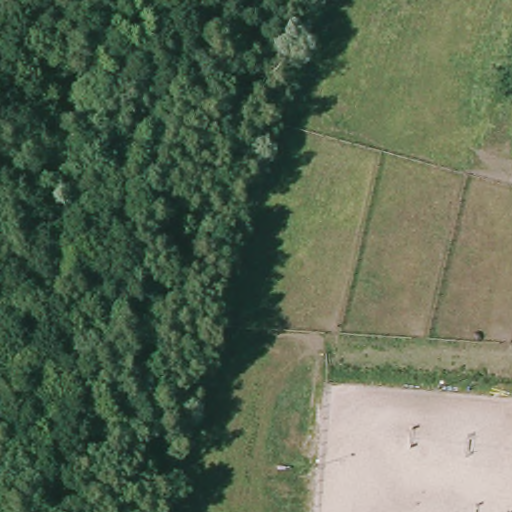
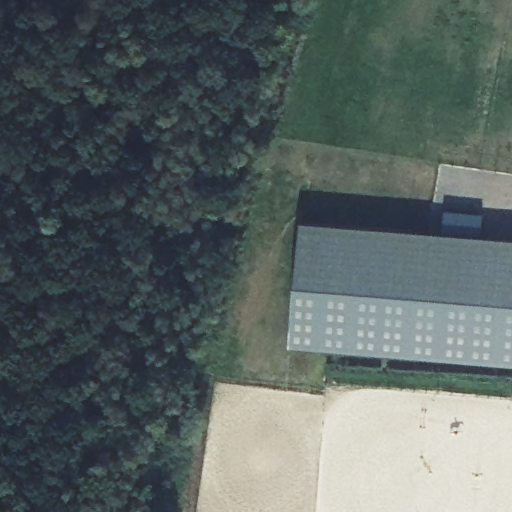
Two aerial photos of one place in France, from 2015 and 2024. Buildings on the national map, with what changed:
new [(291,345),(301,219),(512,237),(512,364),(291,345)]

